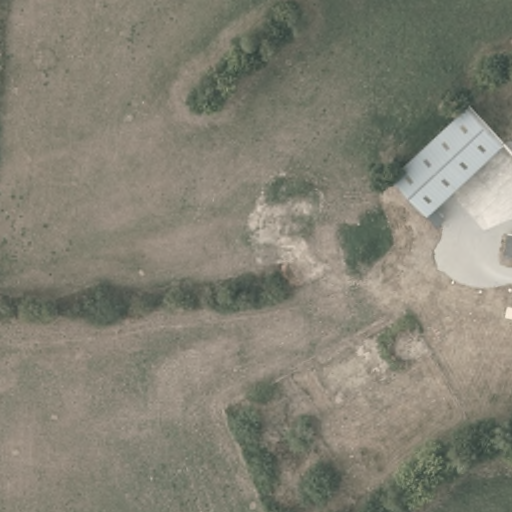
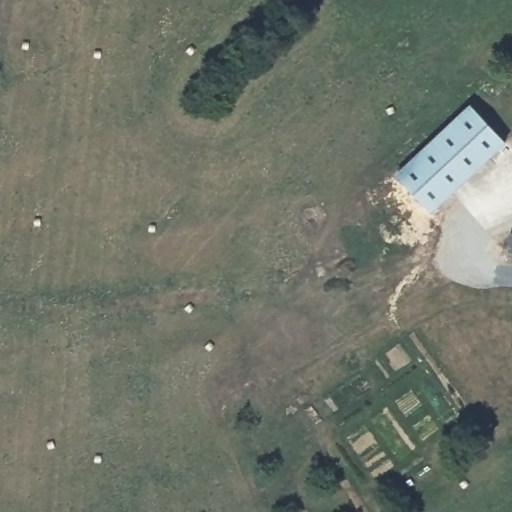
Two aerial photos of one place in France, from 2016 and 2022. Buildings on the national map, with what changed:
unchanged [(510,150),(424,206),(396,161),(480,104),(510,150)]
unchanged [(510,230),(512,231),(512,255),(507,254),(510,230)]

